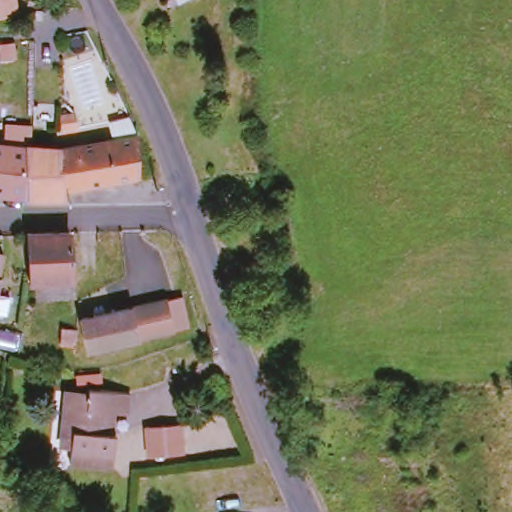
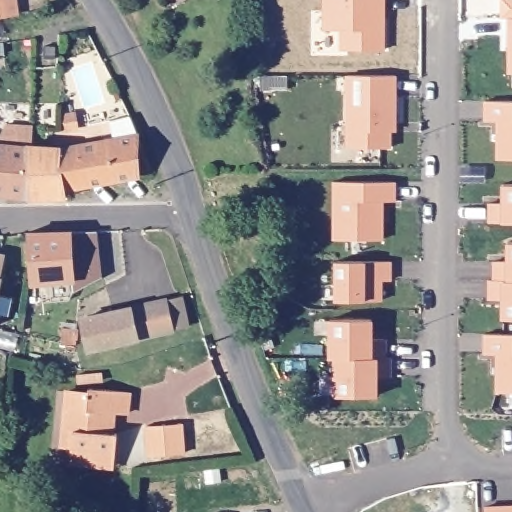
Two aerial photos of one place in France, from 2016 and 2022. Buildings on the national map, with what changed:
unchanged [(26,11),(0,16),(0,0),(24,0),(26,11)]
new [(383,51),(343,51),(343,30),(325,30),(325,0),(383,0),(383,51)]
new [(507,0),(512,0),(512,12),(507,12),(507,0)]
new [(512,46),(512,68),(511,68),(512,46)]
new [(396,75),(396,122),(391,122),(391,147),(348,147),(348,74),(396,75)]
new [(498,159),(498,120),(486,120),(486,100),(512,101),(512,159),(498,159)]
unchanged [(67,148),(141,135),(140,177),(70,186),(67,148)]
unchanged [(33,197),(0,195),(0,146),(31,146),(33,197)]
unchanged [(70,186),(70,187),(71,198),(33,197),(31,146),(38,147),(67,148),(70,186)]
new [(392,200),(380,200),(380,239),(332,239),(332,181),(392,181),(392,200)]
new [(490,221),(490,202),(504,202),(504,183),(512,184),(512,221),(490,221)]
unchanged [(31,234),(73,234),(75,284),(32,284),(31,234)]
new [(503,298),(490,298),(490,279),(495,279),(495,260),(508,260),(509,241),(512,241),(512,318),(503,318),(503,298)]
unchanged [(12,252),(0,318),(0,252),(12,252)]
new [(390,261),(390,279),(382,280),(381,300),(336,300),(336,261),(390,261)]
unchanged [(91,314),(173,296),(180,326),(97,344),(91,314)]
new [(372,319),(371,338),(385,339),(385,357),(390,357),(390,376),(377,376),(377,395),(335,395),(336,357),(331,357),(331,319),(372,319)]
unchanged [(71,320),(85,320),(86,320),(87,329),(87,336),(72,337),(71,320)]
new [(498,391),(498,353),(485,352),(485,333),(512,333),(512,392),(498,391)]
unchanged [(115,432),(121,432),(120,465),(77,463),(77,431),(69,431),(71,392),(92,393),(93,389),(120,391),(134,391),(134,413),(119,412),(118,429),(115,432)]
unchanged [(187,427),(185,458),(150,457),(151,430),(152,427),(170,427),(187,427)]
new [(485,512),(485,507),(512,506),(512,512),(485,512)]

